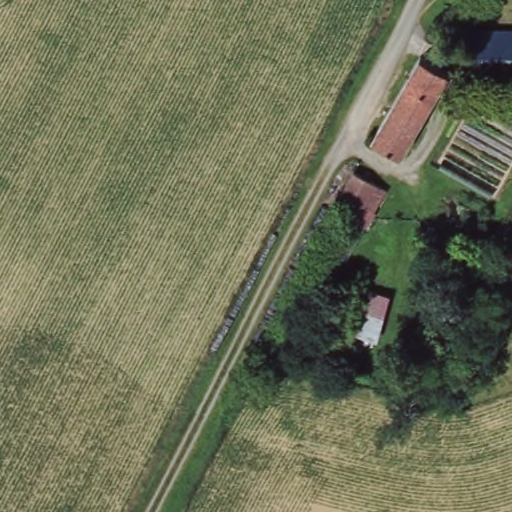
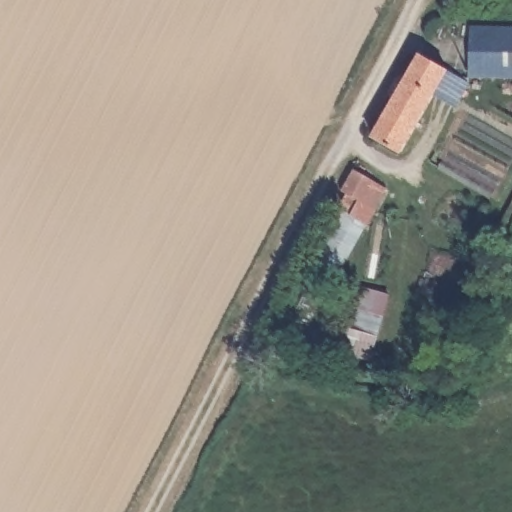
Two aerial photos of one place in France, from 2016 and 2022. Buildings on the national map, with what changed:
unchanged [(443,70),(398,155),(370,140),(414,54),(427,59),(443,70)]
unchanged [(385,190),(365,227),(351,220),(353,214),(341,209),(346,198),(340,195),(352,171),(385,190)]

